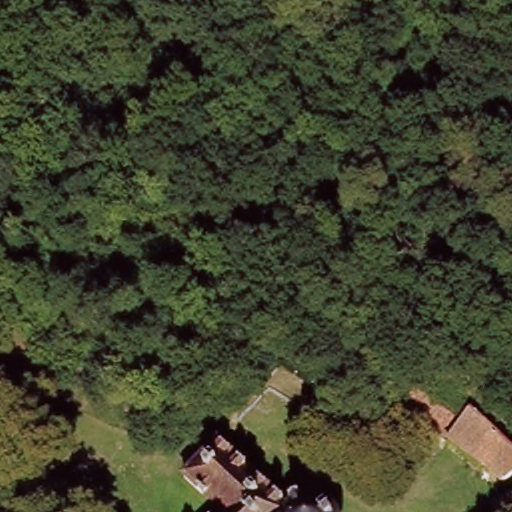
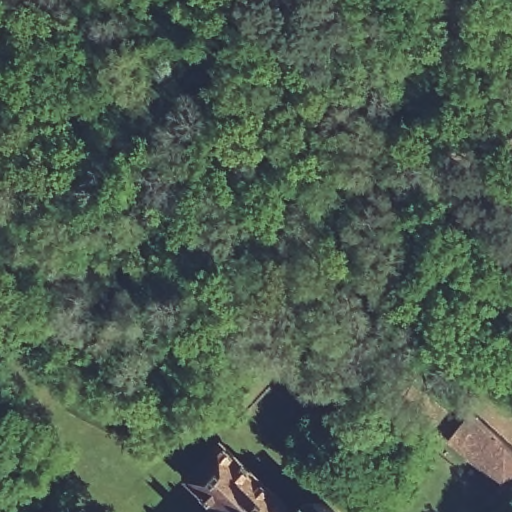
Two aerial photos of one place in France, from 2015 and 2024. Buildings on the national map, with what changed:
unchanged [(487,424),(512,447),(512,474),(505,481),(468,450),(451,436),(462,423),(473,412),(487,424)]
unchanged [(250,473),(286,506),(294,497),(302,494),(312,492),(323,493),(335,499),(340,506),(342,512),(220,512),(220,511),(192,483),(188,479),(189,473),(219,445),(250,473)]

